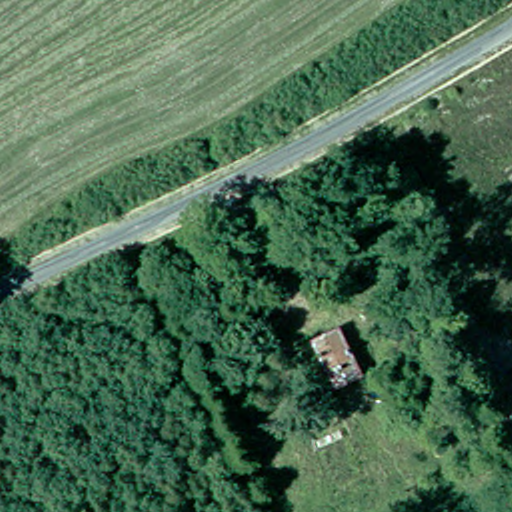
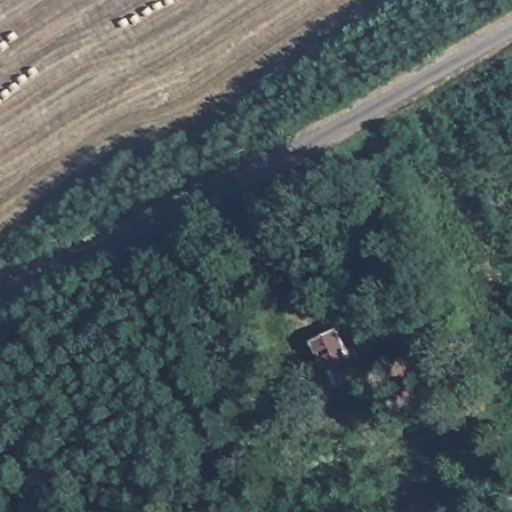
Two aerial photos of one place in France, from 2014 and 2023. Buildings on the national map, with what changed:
unchanged [(337,323),(370,374),(336,392),(308,341),(337,323)]

